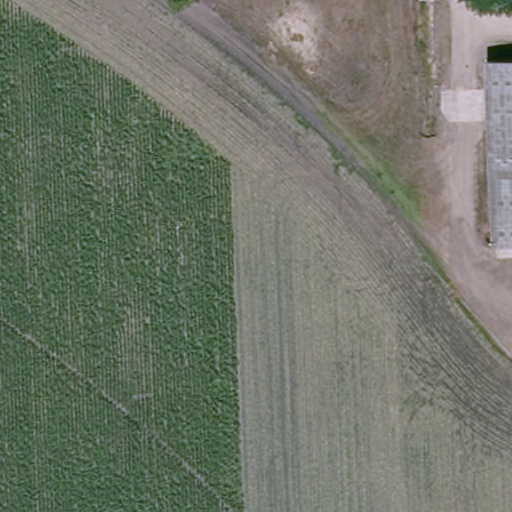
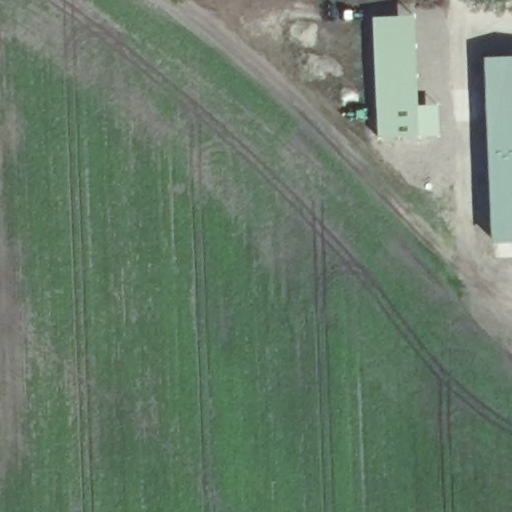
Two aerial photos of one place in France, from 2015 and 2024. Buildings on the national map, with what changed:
new [(415,14),(418,104),(438,104),(440,135),(377,138),(372,16),(415,14)]
unchanged [(485,58),(512,57),(512,242),(493,243),(485,58)]

